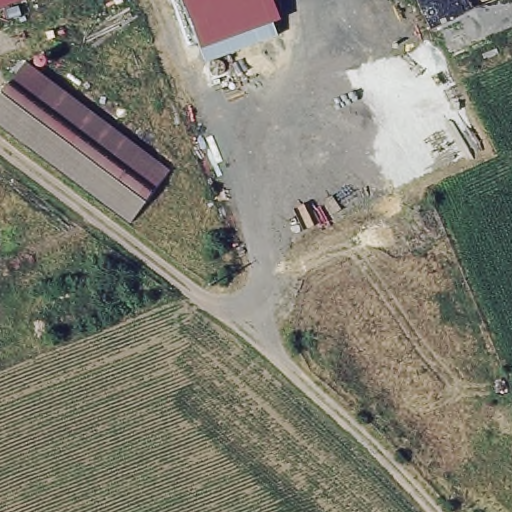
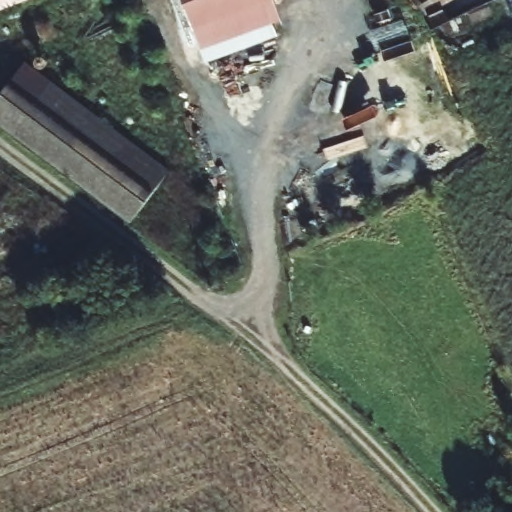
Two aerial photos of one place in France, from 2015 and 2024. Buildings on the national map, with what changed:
unchanged [(20,0),(0,8),(0,0),(20,0)]
unchanged [(200,45),(185,0),(265,0),(272,18),(200,45)]
unchanged [(272,18),(265,0),(276,0),(282,14),(272,18)]
unchanged [(27,57),(170,165),(130,217),(0,119),(0,91),(27,57)]

